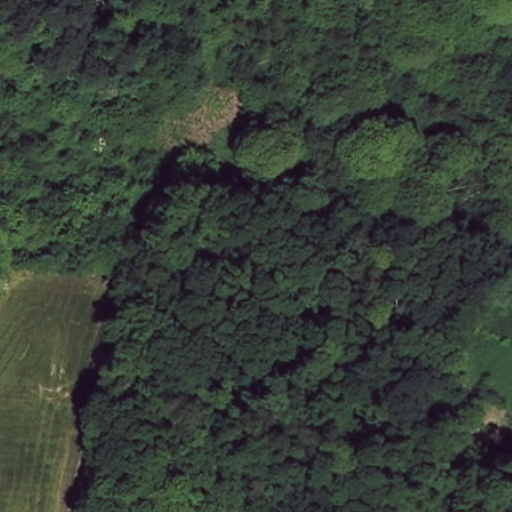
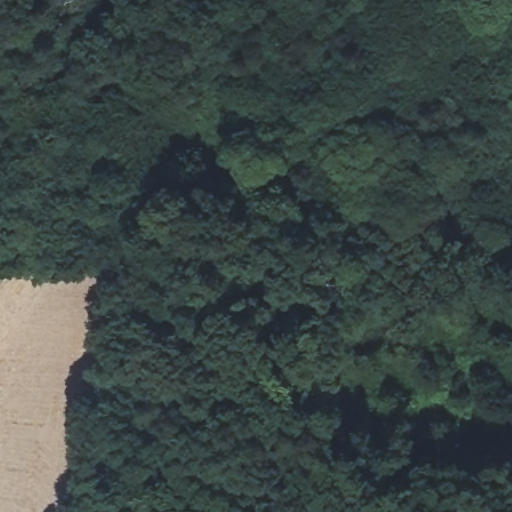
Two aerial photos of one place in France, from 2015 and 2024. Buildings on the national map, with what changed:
[]

